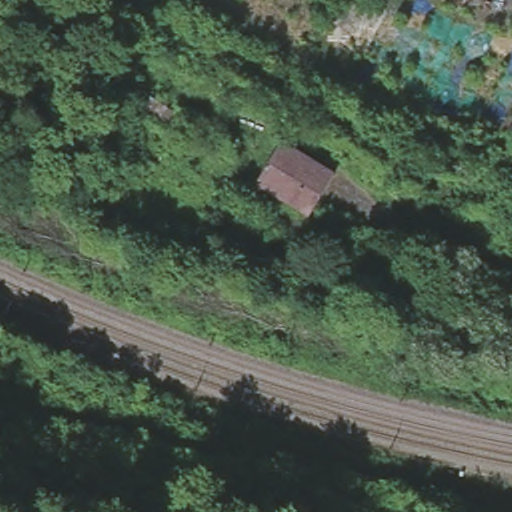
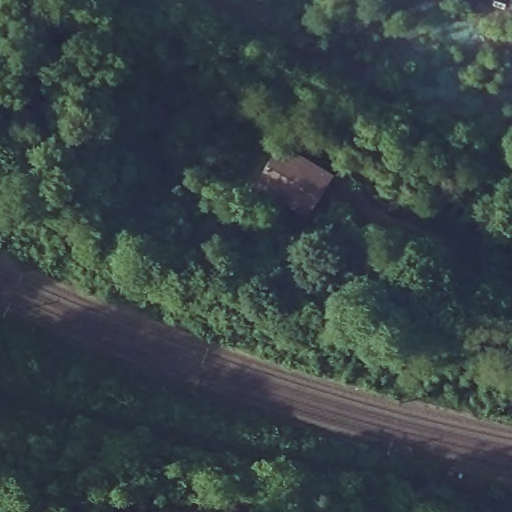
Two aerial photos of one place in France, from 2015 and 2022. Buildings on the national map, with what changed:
unchanged [(252,188),(254,185),(279,141),(283,133),(316,162),(328,171),(331,174),(311,228),(252,188)]

